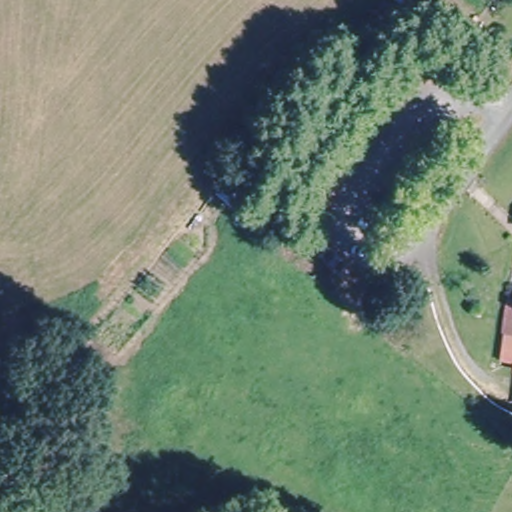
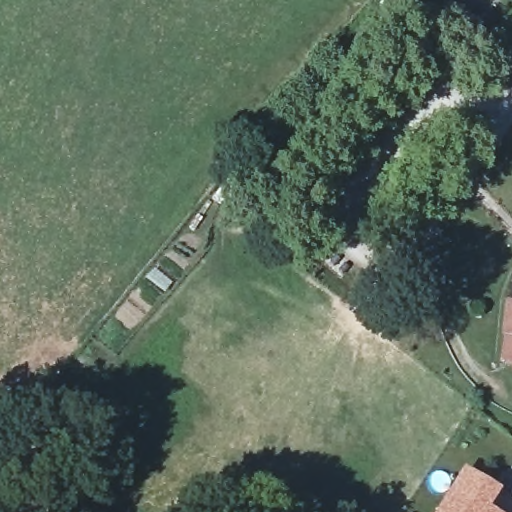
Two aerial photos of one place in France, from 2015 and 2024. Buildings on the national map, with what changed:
new [(501,490),(490,507),(497,512),(436,512),(464,467),(501,490)]

